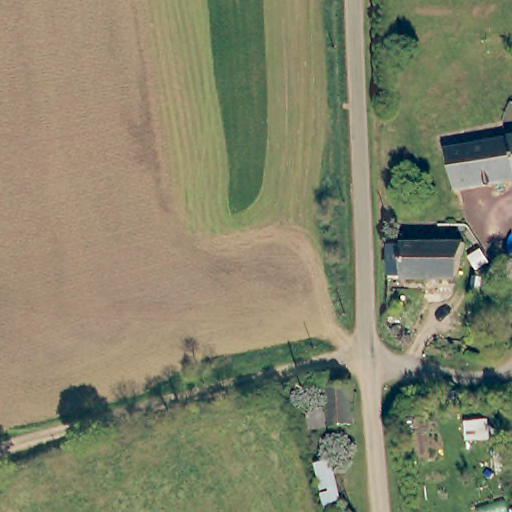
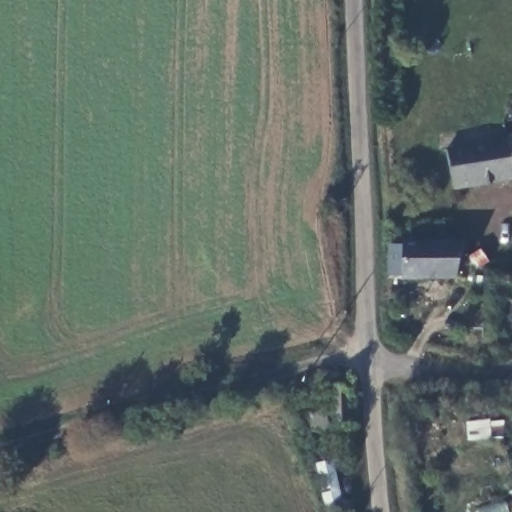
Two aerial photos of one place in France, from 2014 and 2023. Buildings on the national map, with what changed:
unchanged [(512,137),(512,152),(510,138),(512,137)]
unchanged [(512,152),(512,180),(456,189),(450,148),(510,138),(512,152)]
unchanged [(401,247),(415,246),(415,244),(475,243),(470,279),(398,280),(401,247)]
unchanged [(355,424),(310,427),(310,411),(326,411),(324,377),(326,376),(342,374),(343,385),(353,384),(355,424)]
unchanged [(315,463),(333,460),(340,508),(323,511),(315,463)]

